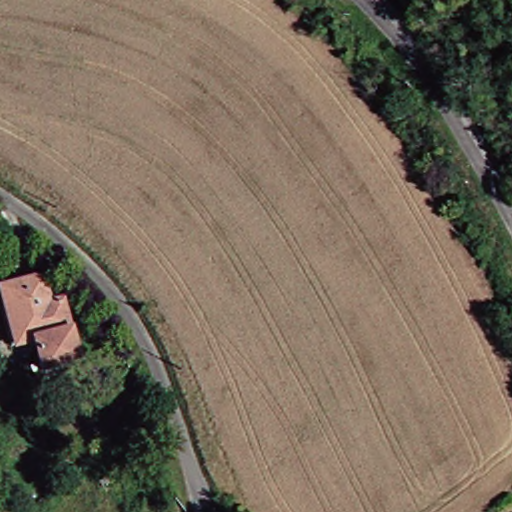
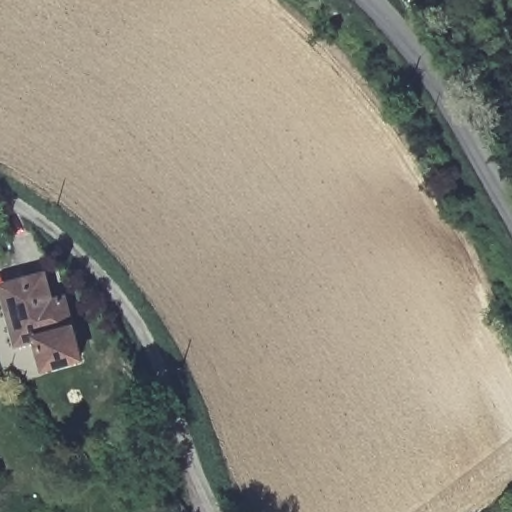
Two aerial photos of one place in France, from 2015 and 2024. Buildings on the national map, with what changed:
unchanged [(0,299),(0,283),(37,273),(45,302),(60,298),(75,356),(35,369),(27,337),(21,338),(10,340),(4,314),(0,299)]

